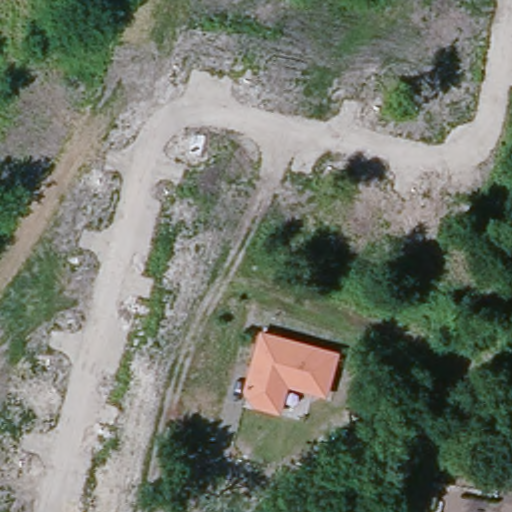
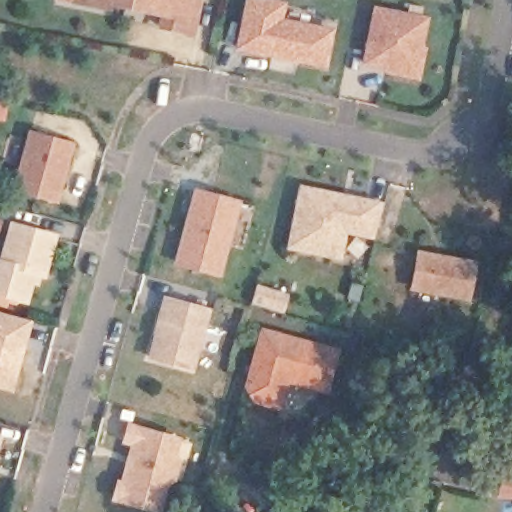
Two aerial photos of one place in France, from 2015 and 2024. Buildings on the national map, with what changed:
unchanged [(198,38),(186,35),(166,31),(169,19),(154,16),(155,12),(115,3),(114,7),(99,4),(98,8),(65,0),(194,0),(193,1),(206,4),(198,38)]
new [(286,2),(283,18),(336,28),(326,70),(234,49),(245,0),(278,0),(286,2)]
new [(387,69),(362,64),(373,5),(429,18),(423,46),(428,47),(421,82),(386,76),(387,69)]
new [(44,128),(85,139),(70,196),(29,185),(44,128)]
new [(385,203),(375,241),(348,235),(343,261),(285,250),(299,183),(385,203)]
new [(242,200),(221,277),(172,266),(194,188),(242,200)]
new [(47,280),(42,279),(40,287),(34,285),(28,304),(0,295),(0,259),(9,221),(58,234),(47,280)]
new [(430,258),(439,260),(471,266),(464,301),(410,290),(416,256),(430,258)]
new [(212,308),(195,371),(147,358),(163,295),(212,308)]
new [(43,318),(24,388),(0,381),(0,314),(2,307),(43,318)]
unchanged [(260,328),(338,347),(328,390),(290,379),(281,407),(256,400),(243,386),(260,328)]
new [(126,421),(180,436),(176,452),(181,461),(176,480),(169,486),(163,512),(161,512),(111,501),(116,478),(122,480),(129,446),(121,443),(126,421)]
new [(0,476),(0,435),(10,438),(0,476)]

